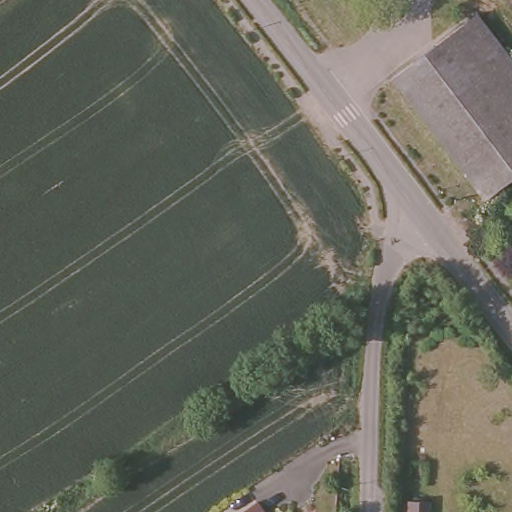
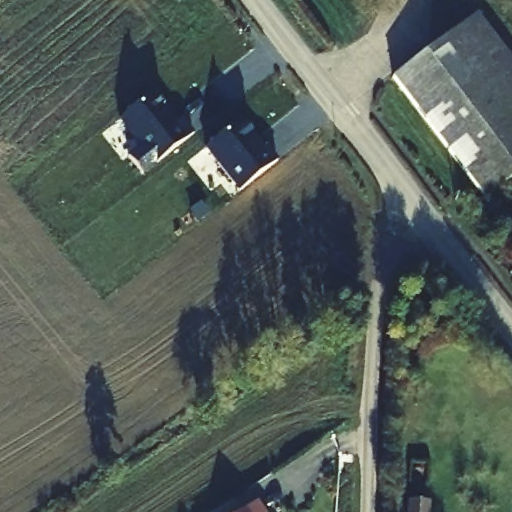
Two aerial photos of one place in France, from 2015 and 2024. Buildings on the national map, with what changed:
unchanged [(489,17),(512,52),(512,170),(475,192),(404,76),(399,67),(452,39),(489,17)]
new [(143,175),(127,156),(140,146),(119,120),(152,93),(177,122),(182,119),(193,132),(143,175)]
new [(205,149),(242,120),(275,162),(238,192),(205,149)]
unchanged [(432,512),(413,512),(413,502),(432,501),(432,512)]
unchanged [(253,512),(265,504),(270,512),(253,512)]

